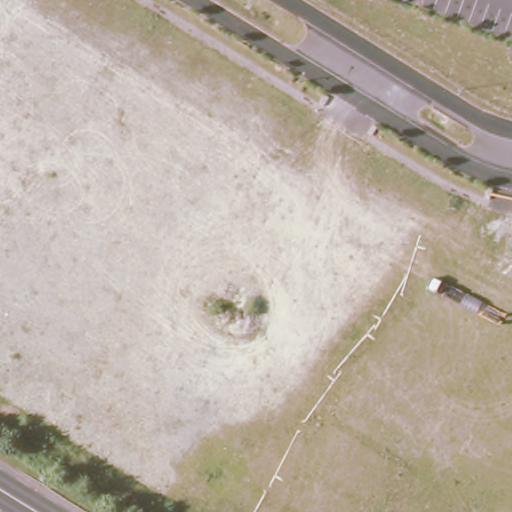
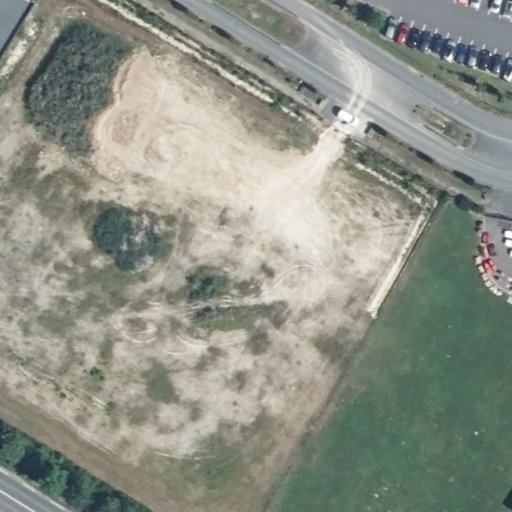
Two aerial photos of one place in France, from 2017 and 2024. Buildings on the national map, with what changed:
new [(0,50),(0,0),(31,0),(0,50)]

